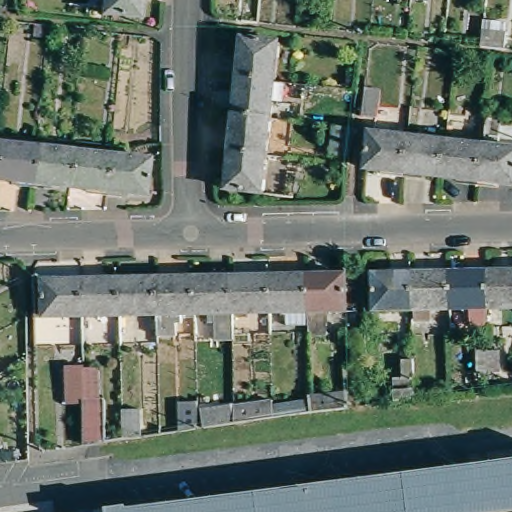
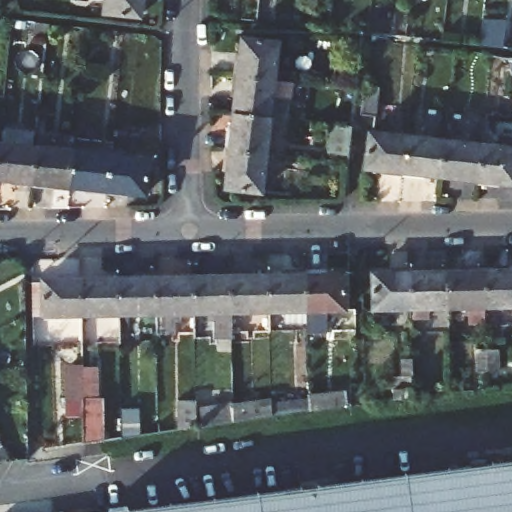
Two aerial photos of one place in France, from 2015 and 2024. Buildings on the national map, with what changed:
unchanged [(102,14),(103,1),(94,0),(139,0),(137,17),(102,14)]
unchanged [(232,75),(234,60),(239,61),(242,37),(277,41),(272,80),(232,75)]
unchanged [(232,114),(236,91),(230,90),(232,75),(272,80),(268,118),(232,114)]
unchanged [(380,92),(376,120),(362,119),(365,90),(380,92)]
unchanged [(224,149),(226,134),(231,134),(232,114),(268,118),(264,154),(224,149)]
unchanged [(352,126),(349,157),(327,154),(332,124),(352,126)]
unchanged [(400,178),(385,177),(386,172),(362,169),(367,134),(404,138),(400,178)]
unchanged [(417,175),(416,179),(400,178),(404,138),(442,142),(438,178),(417,175)]
unchanged [(442,142),(479,146),(475,186),(460,184),(461,179),(438,178),(442,142)]
unchanged [(16,182),(0,180),(0,144),(36,148),(31,188),(15,186),(16,182)]
unchanged [(479,146),(512,150),(512,185),(491,183),(491,188),(475,186),(479,146)]
unchanged [(46,185),(46,189),(31,188),(36,148),(72,151),(69,188),(46,185)]
unchanged [(260,192),(225,188),(227,165),(222,164),(224,149),(264,154),(260,192)]
unchanged [(91,194),(91,190),(69,188),(72,151),(110,155),(106,196),(91,194)]
unchanged [(110,155),(148,159),(144,195),(121,193),(120,198),(106,196),(110,155)]
unchanged [(485,304),(484,265),(500,264),(500,269),(512,269),(512,304),(485,304)]
unchanged [(447,305),(447,271),(469,270),(469,265),(484,265),(485,304),(447,305)]
unchanged [(371,307),(371,273),(394,273),(394,267),(409,267),(410,306),(371,307)]
unchanged [(410,306),(409,267),(425,267),(425,272),(447,271),(447,305),(410,306)]
unchanged [(314,331),(314,322),(292,322),(292,309),(277,309),(276,275),(299,274),(299,269),(313,269),(329,269),(329,274),(352,273),(352,308),(334,308),(335,331),(314,331)]
unchanged [(222,316),(217,317),(217,310),(202,310),(201,276),(222,275),(223,270),(239,270),(254,270),(254,275),(276,275),(277,309),(240,309),(240,328),(222,327),(222,316)]
unchanged [(89,273),(105,272),(104,278),(127,278),(127,312),(90,312),(89,273)]
unchanged [(127,312),(127,278),(149,277),(149,272),(164,272),(179,272),(179,276),(201,276),(202,310),(187,310),(187,318),(181,318),(180,328),(165,328),(165,310),(127,312)]
unchanged [(41,282),(51,282),(51,279),(75,279),(74,273),(89,273),(90,312),(51,313),(42,313),(41,282)]
unchanged [(474,334),(485,334),(496,334),(496,357),(486,357),(475,357),(474,334)]
unchanged [(66,399),(65,354),(81,354),(96,354),(97,399),(101,399),(101,438),(82,440),(82,399),(66,399)]
unchanged [(391,403),(391,377),(399,377),(399,359),(411,359),(411,400),(391,403)]
unchanged [(268,401),(305,397),(342,392),(343,408),(305,413),(269,418),(231,423),(201,427),(200,404),(231,401),(231,403),(268,398),(268,401)]
unchanged [(194,428),(179,430),(179,398),(193,398),(194,428)]
unchanged [(137,404),(137,436),(119,438),(119,404),(137,404)]
unchanged [(112,508),(133,505),(134,511),(512,463),(512,509),(489,512),(112,512),(112,508)]

